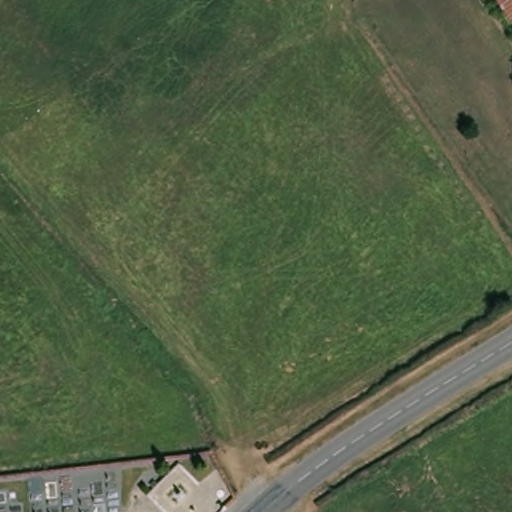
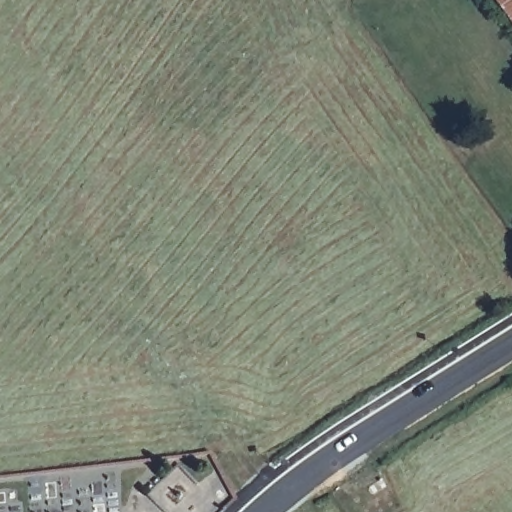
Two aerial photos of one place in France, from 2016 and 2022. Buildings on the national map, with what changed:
unchanged [(512,30),(491,0),(512,0),(512,30)]

